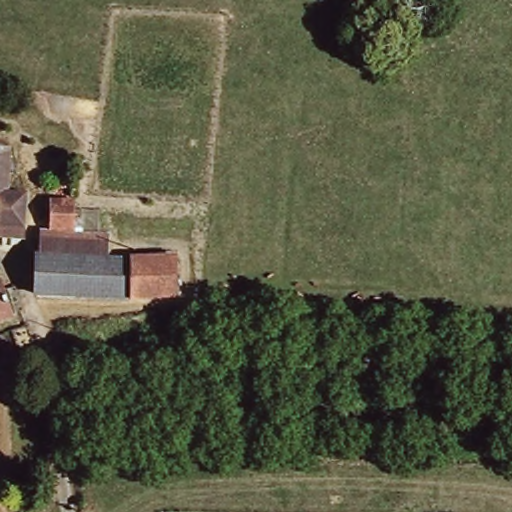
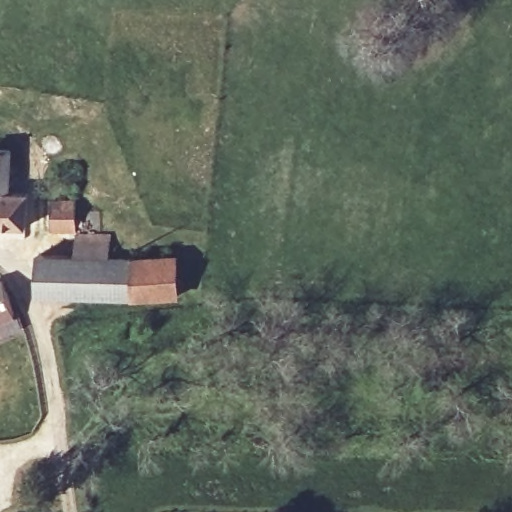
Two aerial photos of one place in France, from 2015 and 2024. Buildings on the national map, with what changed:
unchanged [(7,148),(4,194),(0,194),(0,147),(7,148)]
unchanged [(4,194),(18,196),(15,239),(0,238),(0,194),(4,194)]
unchanged [(44,208),(68,210),(68,219),(94,221),(93,247),(100,247),(100,266),(169,266),(169,301),(116,302),(30,296),(30,262),(35,261),(36,234),(43,234),(44,208)]
unchanged [(11,309),(0,312),(0,285),(1,285),(11,309)]
unchanged [(11,359),(5,335),(20,330),(25,356),(11,359)]

